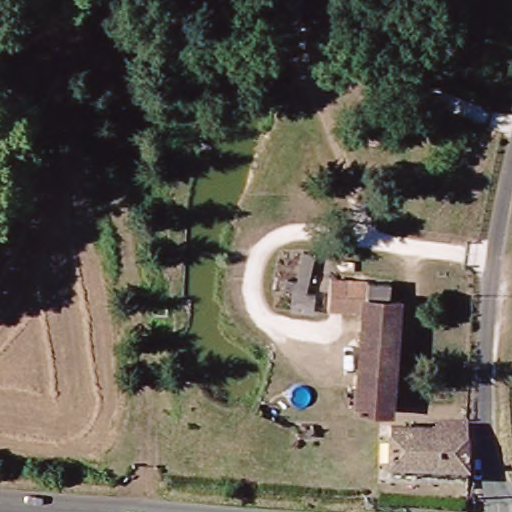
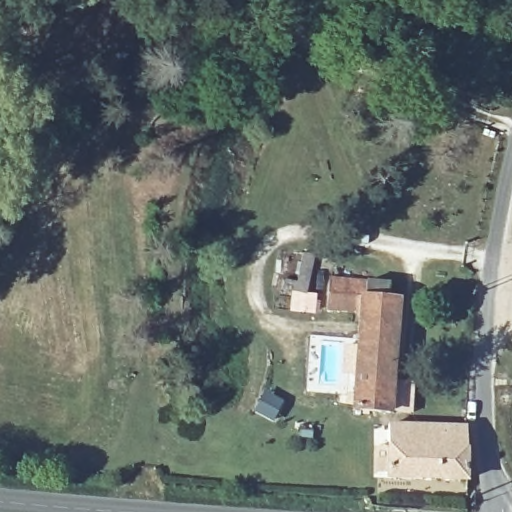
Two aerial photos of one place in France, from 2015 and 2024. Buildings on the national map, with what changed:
unchanged [(361,279),(357,318),(325,315),(327,277),(361,279)]
unchanged [(383,296),(393,296),(383,411),(349,408),(357,318),(361,279),(385,281),(383,296)]
unchanged [(386,478),(387,426),(465,427),(465,479),(386,478)]

